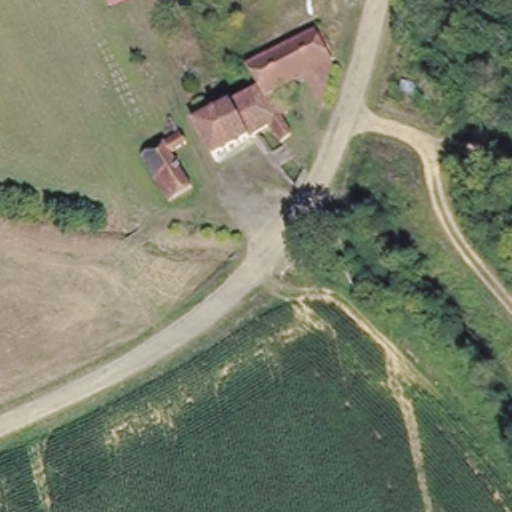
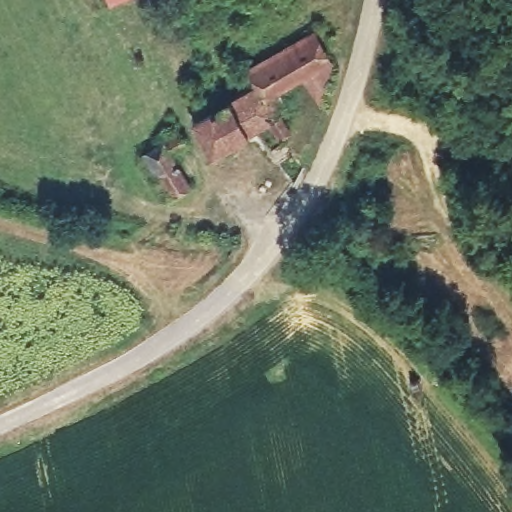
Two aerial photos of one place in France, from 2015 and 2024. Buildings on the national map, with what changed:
unchanged [(112,6),(110,0),(126,0),(112,6)]
unchanged [(252,87),(263,82),(254,62),(323,27),(340,61),(277,95),(295,132),(286,139),(276,122),(263,129),(215,151),(197,114),(241,94),(252,87)]
unchanged [(151,147),(185,130),(191,141),(179,147),(197,188),(172,197),(151,147)]

